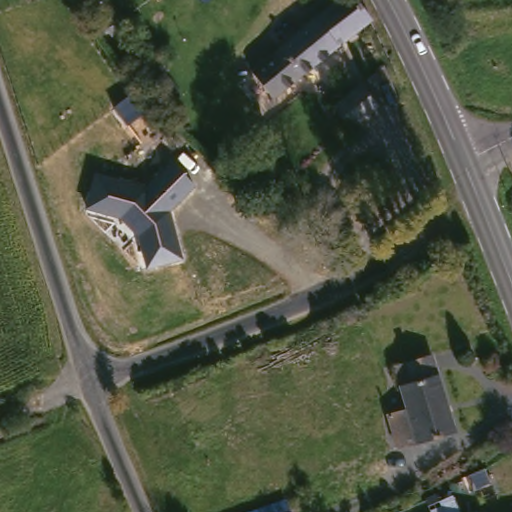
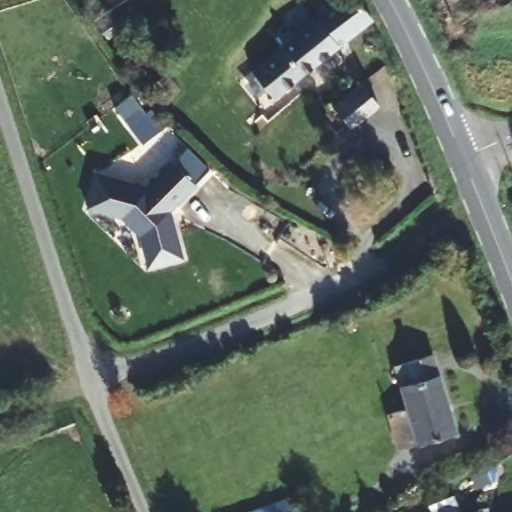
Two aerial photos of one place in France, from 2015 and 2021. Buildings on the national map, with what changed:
unchanged [(253,72),(341,0),(355,0),(372,20),(274,99),(253,72)]
unchanged [(113,36),(103,22),(118,11),(127,25),(113,36)]
unchanged [(333,107),(362,85),(379,106),(351,129),(333,107)]
unchanged [(146,185),(171,162),(194,185),(171,210),(184,260),(146,269),(138,235),(121,217),(86,208),(94,172),(146,185)]
unchanged [(398,449),(388,415),(405,410),(394,366),(432,355),(454,432),(398,449)]
unchanged [(298,512),(233,512),(290,490),(298,512)]
unchanged [(462,512),(431,512),(428,505),(453,494),(462,512)]

